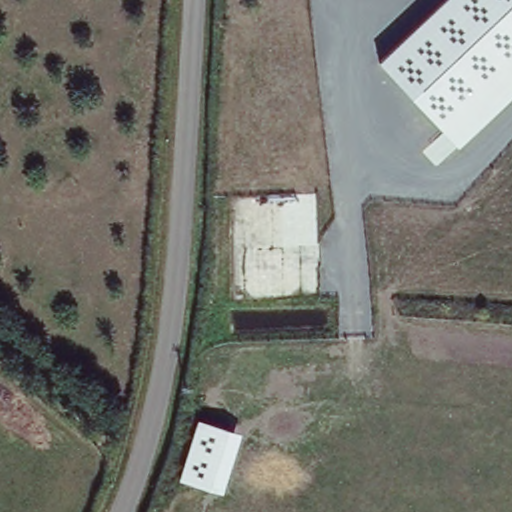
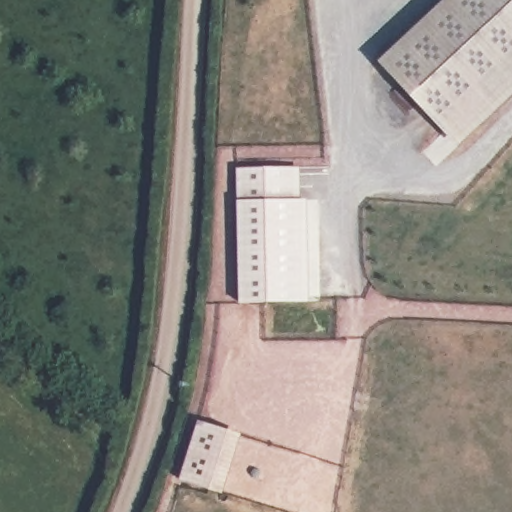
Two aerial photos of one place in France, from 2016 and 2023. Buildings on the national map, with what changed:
unchanged [(512,94),(456,146),(380,61),(445,0),(512,0),(512,94)]
new [(304,162),(304,194),(321,195),(321,298),(240,300),(239,164),(304,162)]
unchanged [(198,420),(241,433),(221,493),(179,480),(198,420)]

